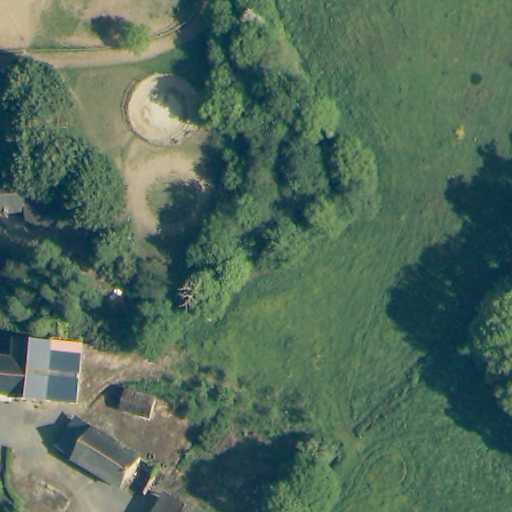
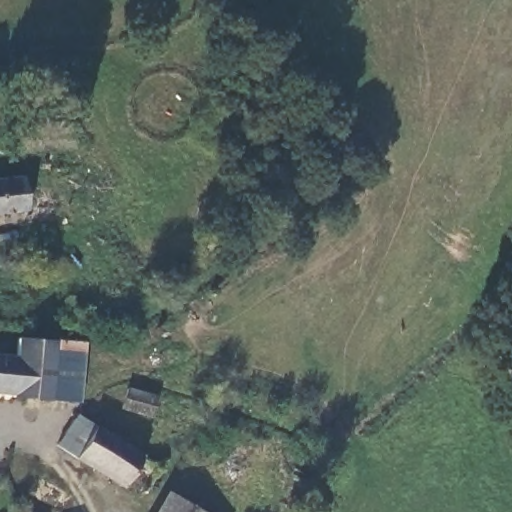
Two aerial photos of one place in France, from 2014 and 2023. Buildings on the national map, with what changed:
unchanged [(17,233),(19,217),(0,216),(0,185),(27,186),(51,187),(48,218),(47,236),(17,233)]
unchanged [(42,398),(42,402),(7,401),(7,395),(0,395),(0,360),(7,361),(9,342),(79,350),(74,401),(42,398)]
unchanged [(124,406),(127,384),(157,390),(154,411),(124,406)]
unchanged [(144,500),(46,441),(69,410),(162,470),(144,500)]
unchanged [(187,512),(152,512),(160,497),(187,512)]
unchanged [(30,512),(14,512),(19,504),(30,512)]

